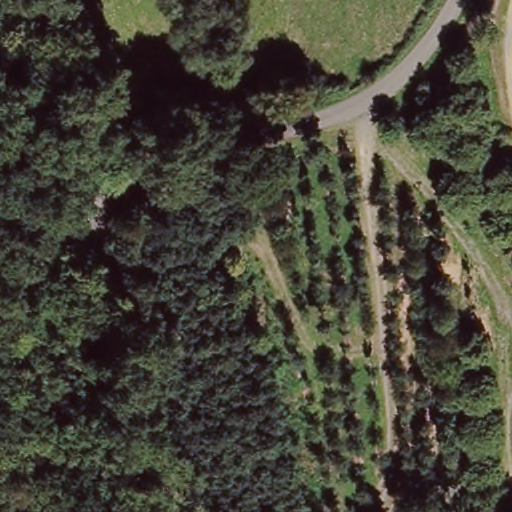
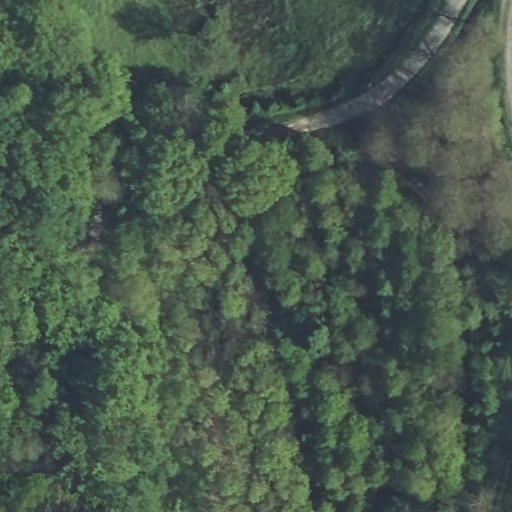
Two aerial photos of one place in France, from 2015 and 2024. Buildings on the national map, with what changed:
[]

